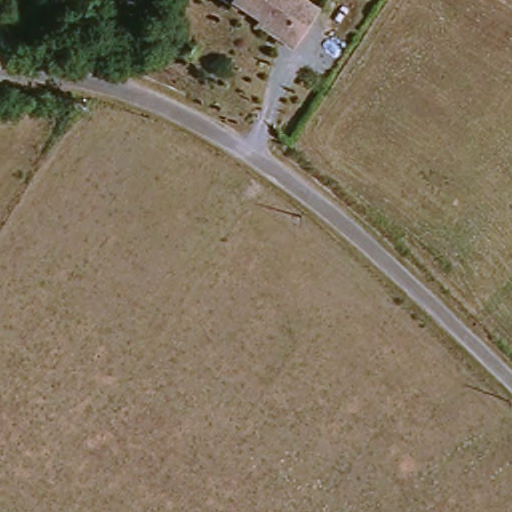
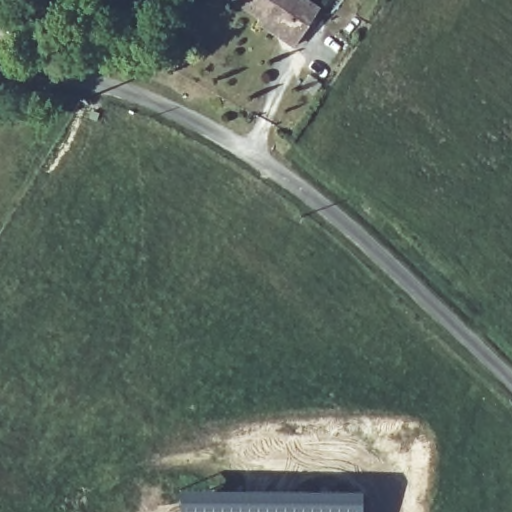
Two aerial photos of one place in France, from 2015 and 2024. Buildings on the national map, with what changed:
unchanged [(255,18),(228,0),(299,0),(313,10),(289,46),(274,36),(252,22),(255,18)]
new [(360,493),(360,512),(177,512),(177,491),(360,493)]

